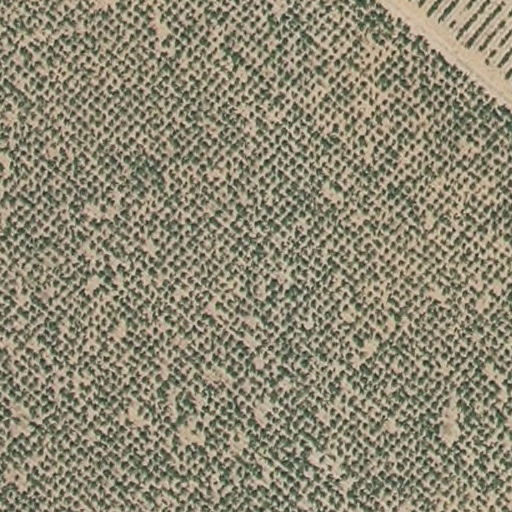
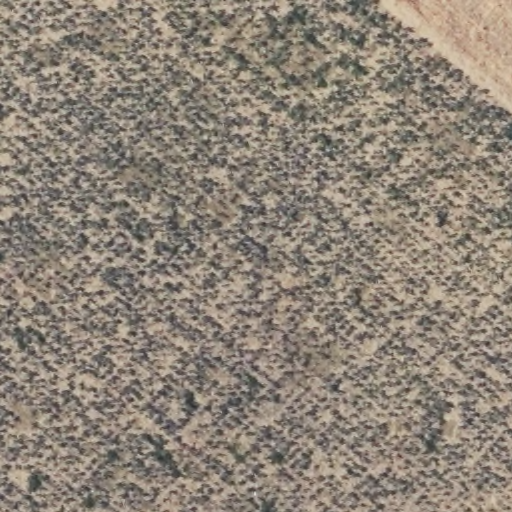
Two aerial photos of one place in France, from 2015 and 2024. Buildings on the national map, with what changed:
[]

